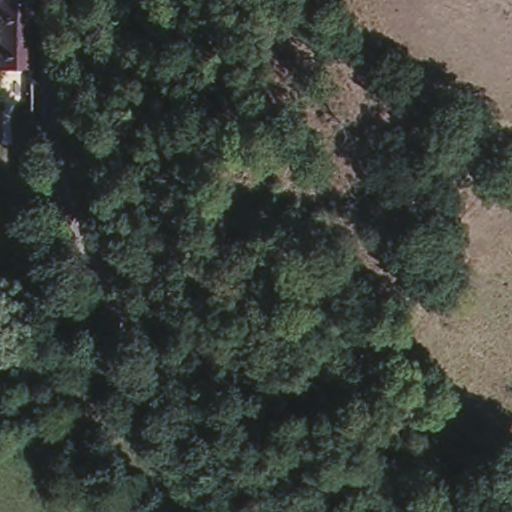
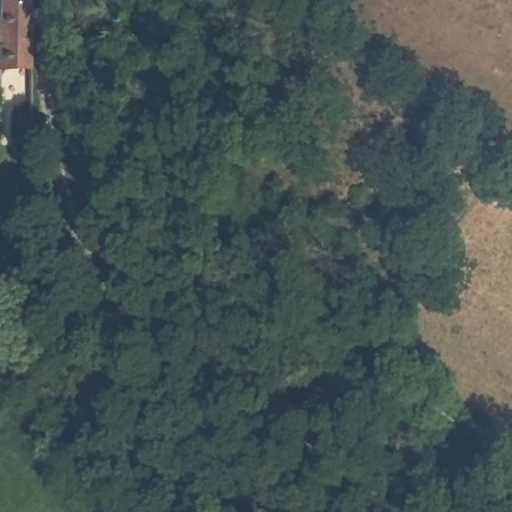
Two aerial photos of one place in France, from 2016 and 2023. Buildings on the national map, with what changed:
unchanged [(31,70),(0,73),(0,6),(33,4),(31,70)]

